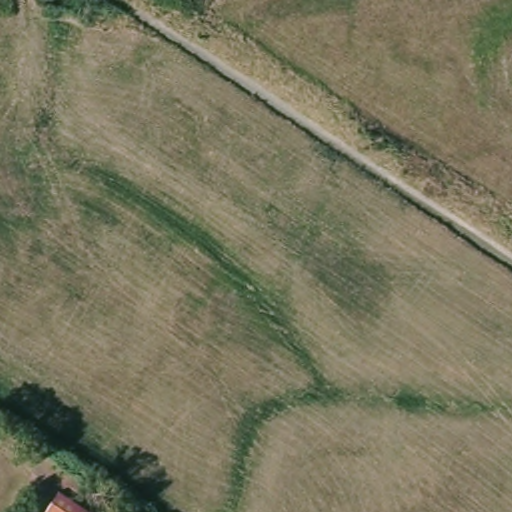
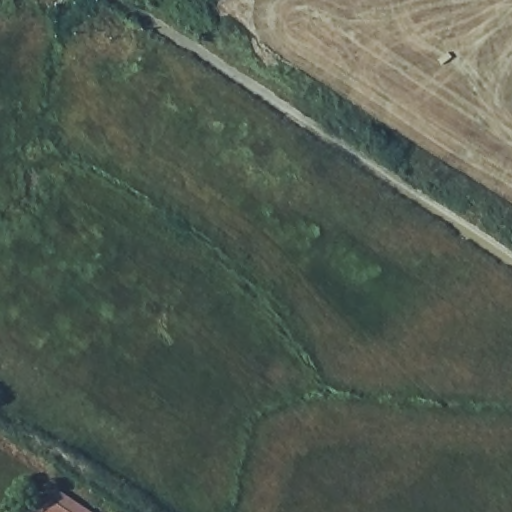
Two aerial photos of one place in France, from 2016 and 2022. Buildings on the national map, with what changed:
unchanged [(50,506),(60,512),(46,512),(50,506)]

